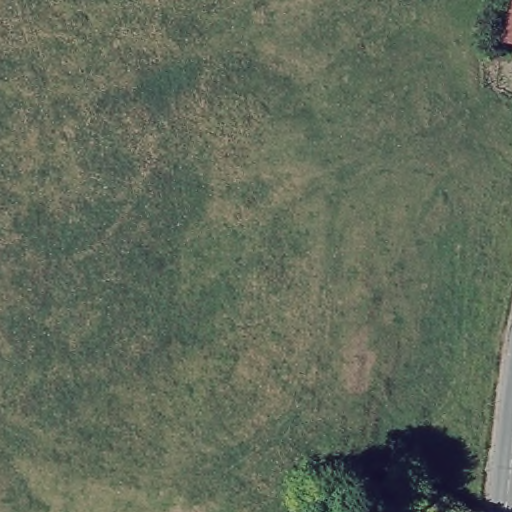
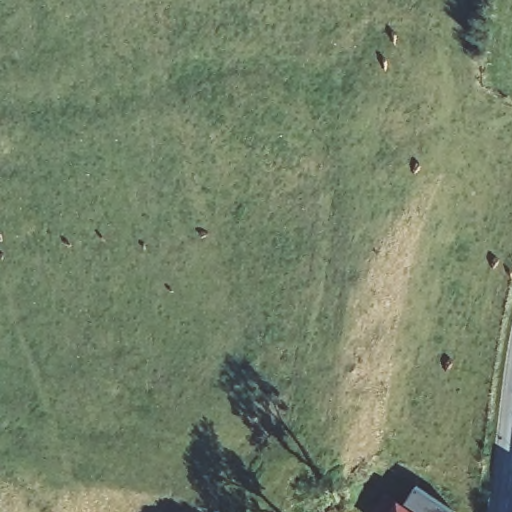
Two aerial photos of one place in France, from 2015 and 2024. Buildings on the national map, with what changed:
new [(405,504),(417,485),(455,510),(453,512),(390,512),(398,499),(405,504)]

